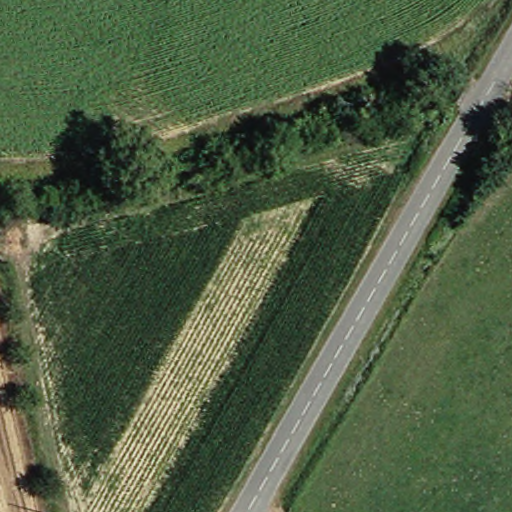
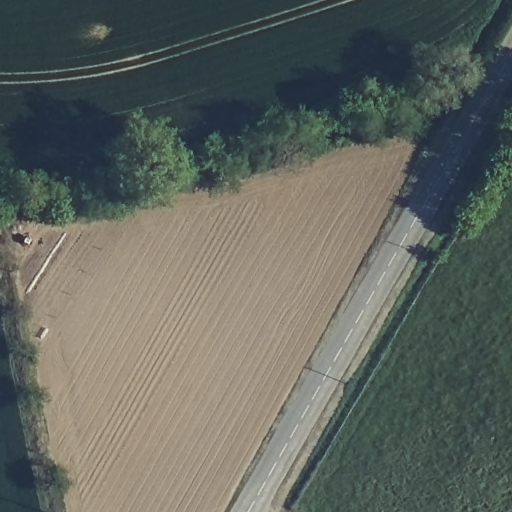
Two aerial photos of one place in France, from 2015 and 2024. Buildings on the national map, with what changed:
[]

